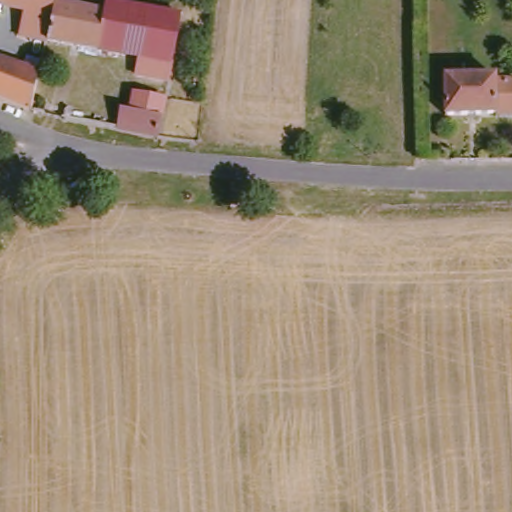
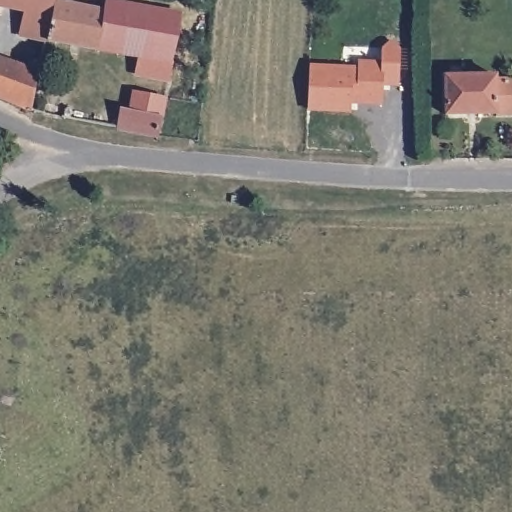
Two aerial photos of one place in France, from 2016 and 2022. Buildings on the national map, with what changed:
unchanged [(53,10),(48,43),(19,37),(23,10),(0,6),(0,0),(55,0),(53,10)]
unchanged [(53,10),(103,18),(104,8),(178,21),(168,84),(138,79),(141,65),(46,49),(48,43),(53,10)]
new [(308,113),(311,65),(359,68),(359,61),(382,63),(382,47),(393,42),(401,49),(399,87),(384,87),(383,106),(351,104),(350,115),(308,113)]
unchanged [(35,104),(0,92),(0,59),(41,67),(35,104)]
unchanged [(501,79),(512,79),(512,113),(449,113),(448,73),(501,73),(501,79)]
unchanged [(163,131),(128,126),(122,125),(125,107),(136,108),(139,90),(168,95),(163,131)]

